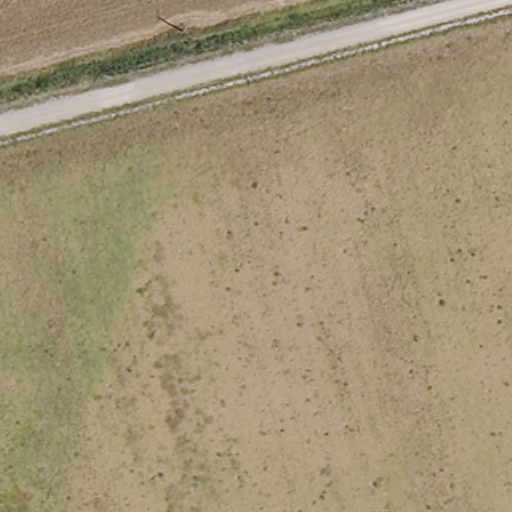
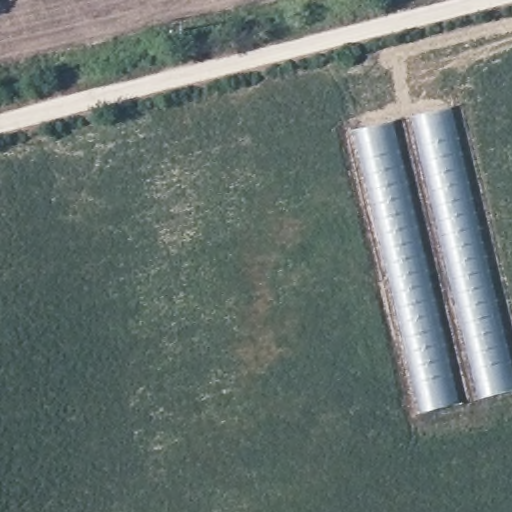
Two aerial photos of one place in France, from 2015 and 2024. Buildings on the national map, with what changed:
new [(452,109),(512,364),(512,392),(479,401),(411,117),(452,109)]
new [(420,414),(355,130),(393,122),(458,404),(420,414)]

